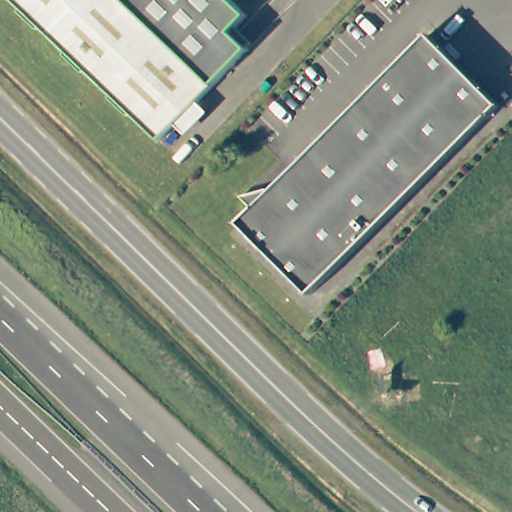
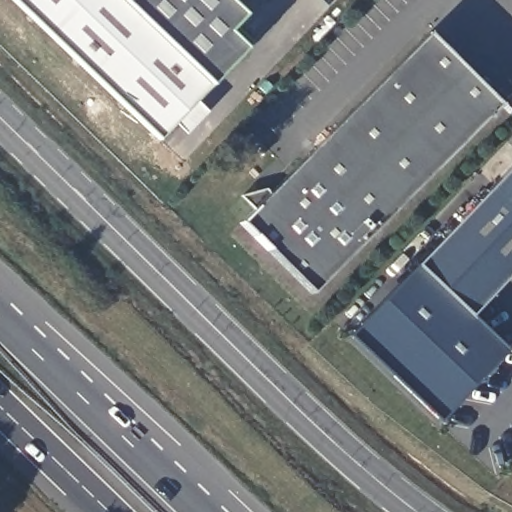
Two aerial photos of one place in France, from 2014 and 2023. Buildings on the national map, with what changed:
unchanged [(227,0),(245,18),(230,35),(247,52),(211,89),(160,144),(10,0),(119,0),(120,1),(121,0),(227,0)]
new [(119,0),(121,0),(120,1),(119,0)]
unchanged [(266,195),(270,198),(422,45),(428,38),(441,50),(500,110),(312,300),(240,228),(255,214),(241,201),(266,195)]
new [(512,166),(512,274),(472,316),(508,352),(440,423),(348,335),(512,166)]

